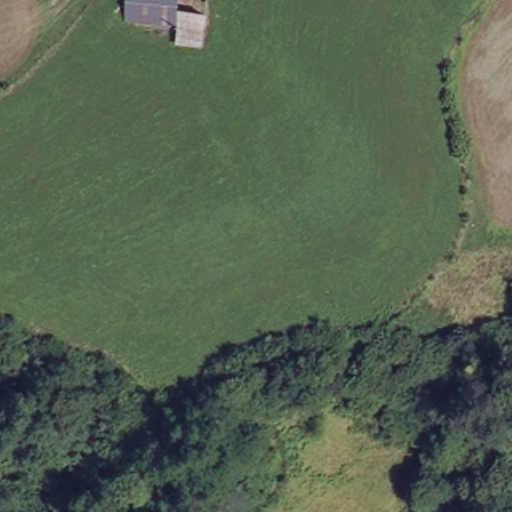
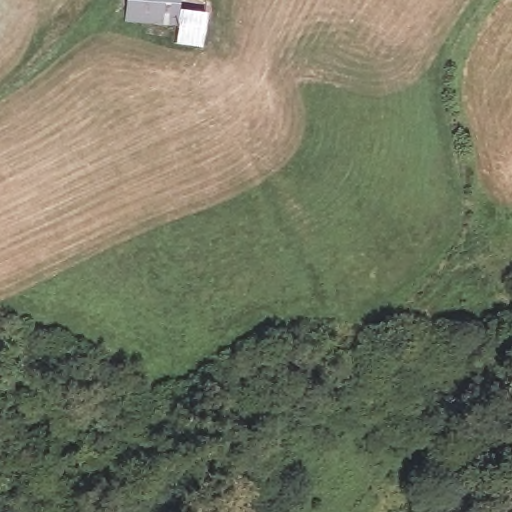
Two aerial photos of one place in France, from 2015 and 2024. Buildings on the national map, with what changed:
unchanged [(180,9),(211,16),(201,52),(166,47),(170,30),(121,24),(126,0),(182,0),(180,9)]

